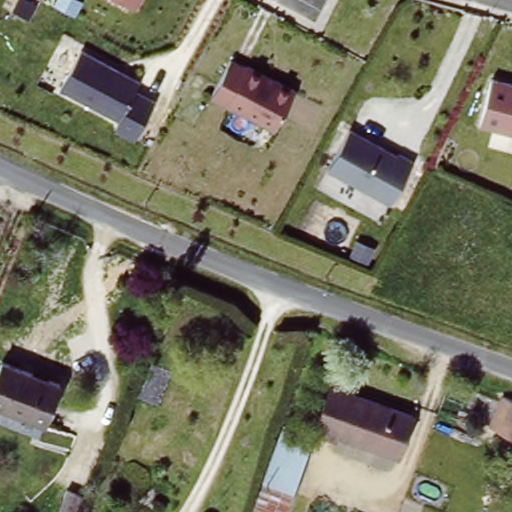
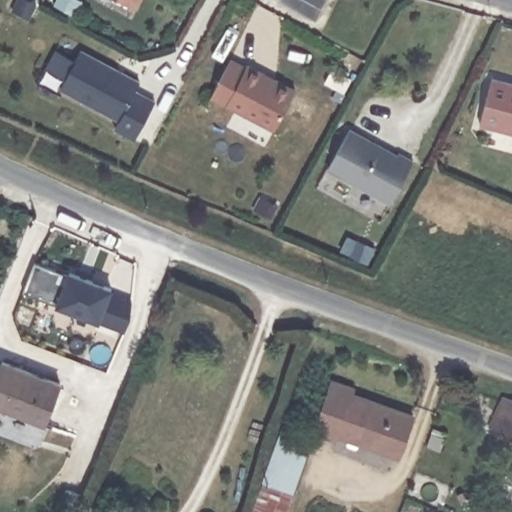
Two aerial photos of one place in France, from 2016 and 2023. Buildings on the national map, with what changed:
unchanged [(119,0),(138,0),(133,8),(119,0)]
unchanged [(139,80),(116,120),(58,88),(82,45),(139,80)]
unchanged [(299,89),(277,131),(210,92),(230,53),(299,89)]
unchanged [(512,80),(512,125),(482,118),(491,74),(512,80)]
unchanged [(412,161),(390,201),(328,164),(350,125),(412,161)]
new [(37,262),(65,272),(52,304),(25,293),(37,262)]
new [(65,272),(107,288),(95,321),(52,304),(65,272)]
unchanged [(42,421),(0,404),(0,359),(55,385),(42,421)]
unchanged [(398,461),(314,432),(305,460),(286,512),(250,512),(285,408),(312,416),(326,375),(357,382),(353,391),(412,413),(398,461)]
unchanged [(495,428),(508,397),(512,399),(512,436),(495,428)]
unchanged [(73,512),(55,512),(65,486),(80,492),(73,512)]

